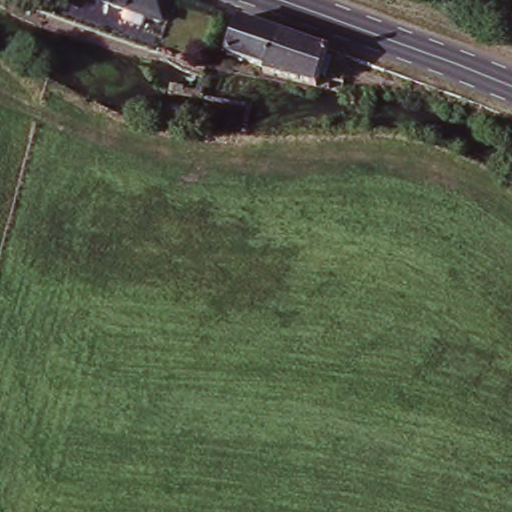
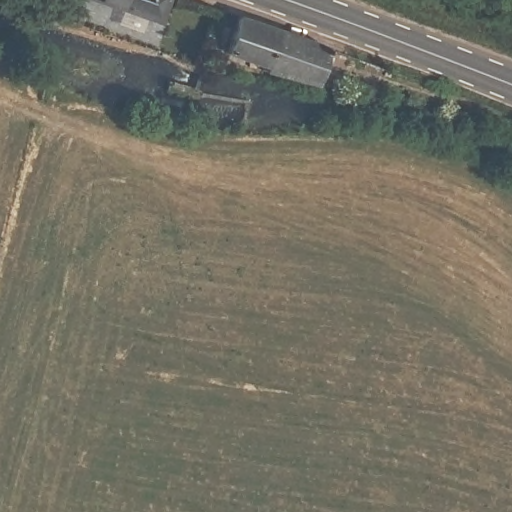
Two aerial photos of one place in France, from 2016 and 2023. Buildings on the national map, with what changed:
unchanged [(160,26),(93,0),(169,0),(160,26)]
unchanged [(269,61),(230,48),(242,13),(282,28),(269,61)]
unchanged [(266,71),(269,61),(282,28),(332,45),(319,82),(266,71)]
unchanged [(328,84),(332,75),(347,80),(345,87),(328,84)]

